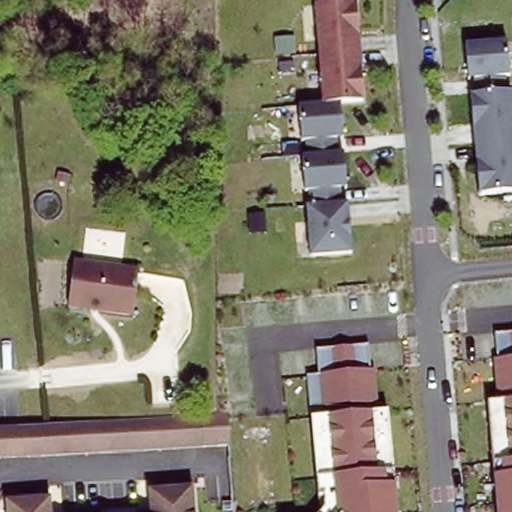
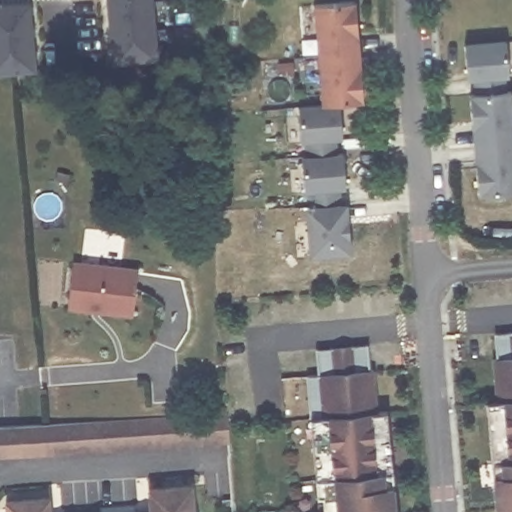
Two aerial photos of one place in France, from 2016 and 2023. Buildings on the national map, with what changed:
new [(113,66),(106,0),(154,0),(160,62),(113,66)]
new [(0,75),(0,4),(30,1),(38,71),(0,75)]
unchanged [(355,1),(363,99),(338,102),(342,138),(337,138),(338,153),(343,153),(346,187),(341,187),(342,203),(349,203),(353,253),(310,255),(306,205),(311,205),(310,189),(305,189),(302,155),(307,155),(305,140),(301,140),(299,105),(321,104),(315,5),(355,1)]
unchanged [(475,92),(472,78),(468,79),(465,44),(507,40),(510,75),(505,75),(507,90),(512,90),(512,191),(479,193),(470,92),(475,92)]
unchanged [(66,264),(129,271),(123,316),(61,309),(66,264)]
unchanged [(512,512),(497,512),(493,476),(487,403),(498,402),(493,360),(498,359),(495,333),(512,332),(512,512)]
unchanged [(370,368),(375,369),(377,412),(387,411),(395,486),(397,512),(320,512),(325,505),(324,496),(318,496),(311,418),(307,375),(319,374),(317,348),(368,344),(370,368)]
unchanged [(40,427),(208,416),(214,415),(221,414),(223,444),(0,459),(0,429),(40,427)]
unchanged [(190,512),(146,512),(144,494),(187,491),(190,512)]
unchanged [(0,503),(43,500),(45,512),(1,512),(0,503)]

